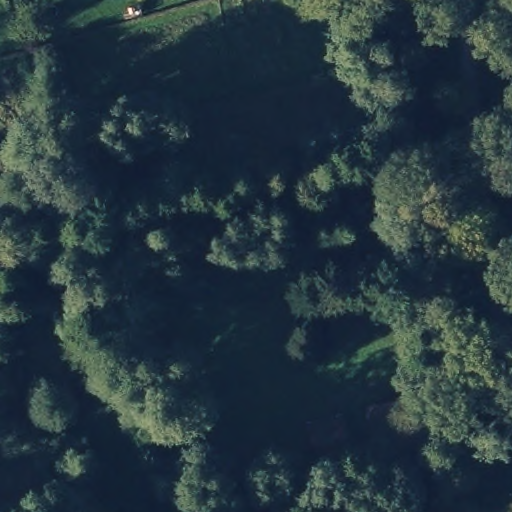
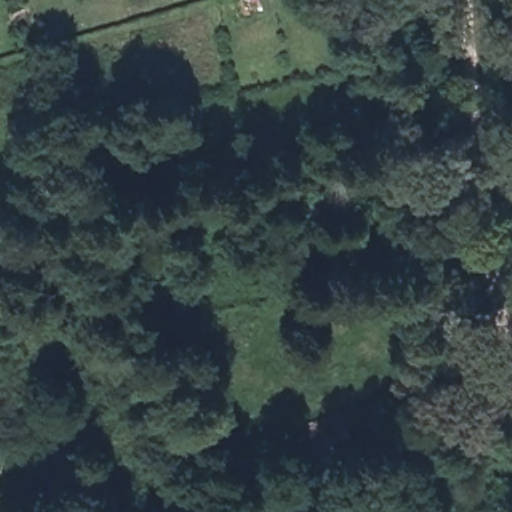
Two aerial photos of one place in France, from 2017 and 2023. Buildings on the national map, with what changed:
unchanged [(327,222),(315,182),(337,177),(342,192),(375,184),(380,204),(327,222)]
unchanged [(412,398),(419,435),(365,442),(357,412),(412,398)]
unchanged [(337,451),(308,462),(297,423),(329,421),(337,451)]

